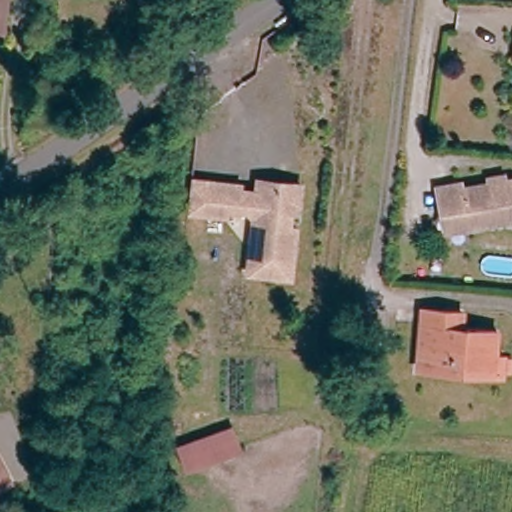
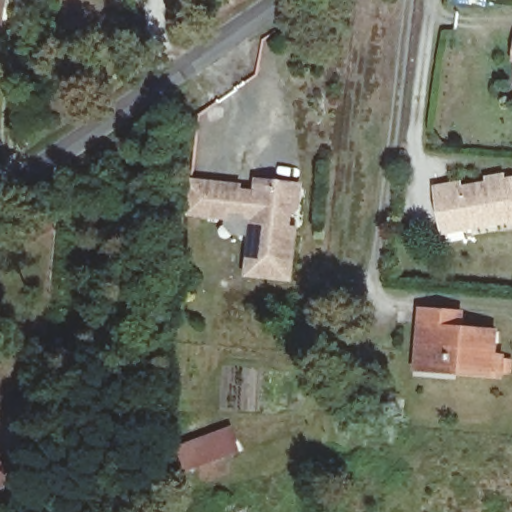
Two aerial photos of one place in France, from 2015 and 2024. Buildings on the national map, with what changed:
unchanged [(0,24),(0,0),(5,0),(4,24),(0,24)]
unchanged [(511,60),(512,45),(512,60),(511,60)]
unchanged [(446,212),(442,186),(464,183),(465,188),(512,181),(512,219),(475,224),(448,228),(446,212)]
unchanged [(241,198),(258,200),(263,195),(274,196),(281,190),(301,213),(292,220),(290,235),(297,236),(292,287),(248,281),(254,236),(258,236),(259,220),(229,216),(227,224),(209,222),(188,219),(192,187),(213,190),(241,193),(241,198)]
unchanged [(497,382),(490,382),(438,376),(412,373),(415,346),(417,315),(457,318),(456,334),(493,338),(491,363),(498,364),(497,382)]
unchanged [(382,418),(354,415),(355,401),(383,403),(382,418)]
unchanged [(194,472),(185,452),(235,434),(242,455),(194,472)]
unchanged [(0,490),(0,463),(12,483),(0,490)]

